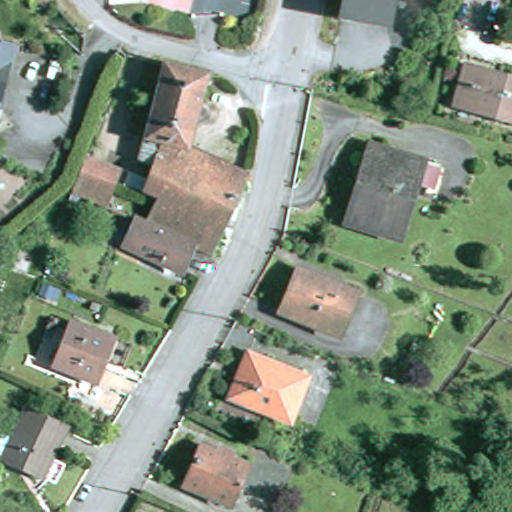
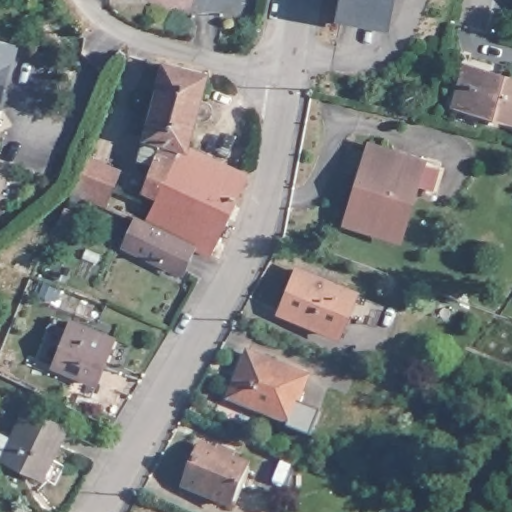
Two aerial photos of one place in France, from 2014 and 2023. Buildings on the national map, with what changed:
unchanged [(338,15),(341,0),(389,0),(384,24),(338,15)]
unchanged [(12,128),(0,131),(0,44),(19,50),(12,82),(3,117),(12,128)]
unchanged [(139,191),(151,164),(136,160),(158,64),(203,77),(186,149),(180,146),(156,199),(139,191)]
unchanged [(459,81),(468,83),(472,67),(512,77),(512,119),(454,104),(459,81)]
unchanged [(143,229),(156,199),(180,146),(186,149),(251,182),(213,263),(191,253),(143,229)]
unchanged [(342,222),(364,147),(414,164),(416,159),(434,165),(427,192),(408,187),(393,237),(342,222)]
unchanged [(110,164),(97,202),(63,189),(73,162),(77,150),(110,164)]
unchanged [(143,229),(191,253),(181,275),(124,247),(133,224),(143,229)]
unchanged [(277,311),(293,270),(351,292),(335,335),(277,311)]
unchanged [(48,365),(62,330),(64,331),(69,320),(106,337),(94,367),(100,370),(93,386),(48,365)]
unchanged [(228,392),(244,348),(305,375),(287,417),(228,392)]
unchanged [(3,457),(27,408),(67,429),(43,480),(3,457)]
unchanged [(183,485),(199,447),(214,455),(216,451),(230,456),(228,460),(246,467),(229,506),(183,485)]

